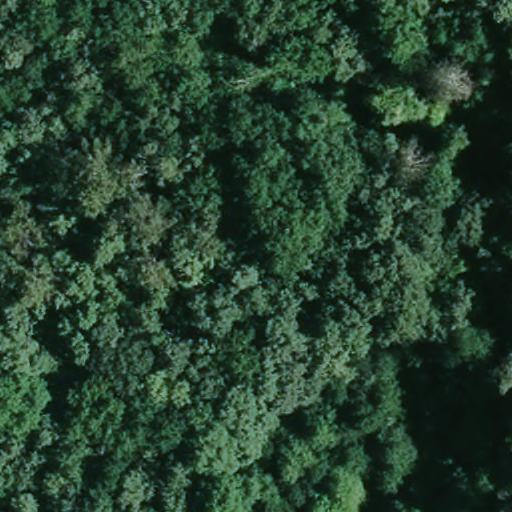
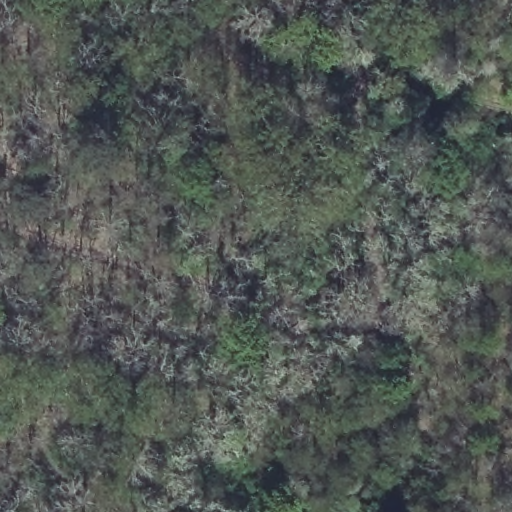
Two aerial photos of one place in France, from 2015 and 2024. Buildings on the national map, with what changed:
unchanged [(350,484),(352,504),(324,505),(322,487),(350,484)]
unchanged [(293,489),(293,507),(275,508),(275,512),(253,512),(250,492),(293,489)]

